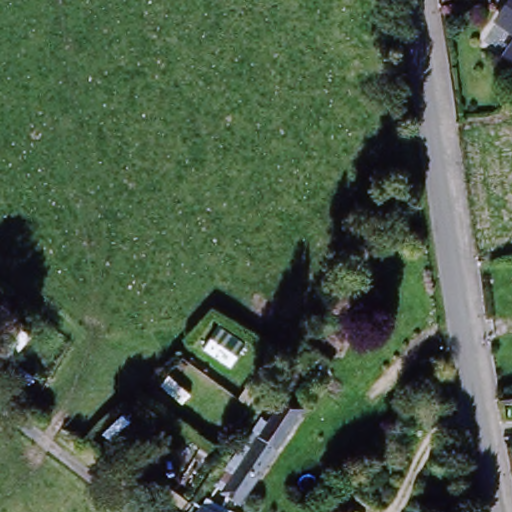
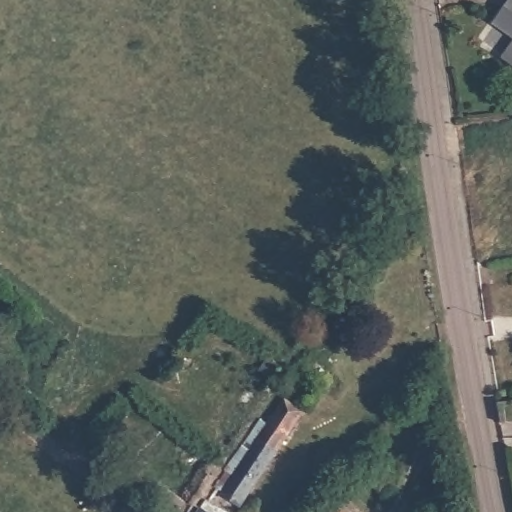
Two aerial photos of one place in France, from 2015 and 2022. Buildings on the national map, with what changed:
unchanged [(493,20),(509,0),(512,0),(512,35),(493,20)]
unchanged [(502,54),(512,38),(512,64),(502,54)]
unchanged [(0,319),(0,316),(1,317),(0,319)]
unchanged [(194,342),(213,322),(231,341),(214,359),(194,342)]
unchanged [(321,369),(313,364),(303,379),(291,371),(310,347),(329,358),(321,369)]
unchanged [(157,383),(173,370),(186,387),(173,403),(157,383)]
unchanged [(207,510),(221,489),(246,450),(237,444),(248,428),(260,411),(268,417),(271,410),(268,408),(272,400),(278,402),(283,394),(308,412),(244,504),(228,494),(216,512),(206,512),(207,510)]
unchanged [(105,432),(124,416),(147,443),(128,459),(105,432)]
unchanged [(162,484),(192,507),(187,512),(170,512),(151,497),(162,484)]

